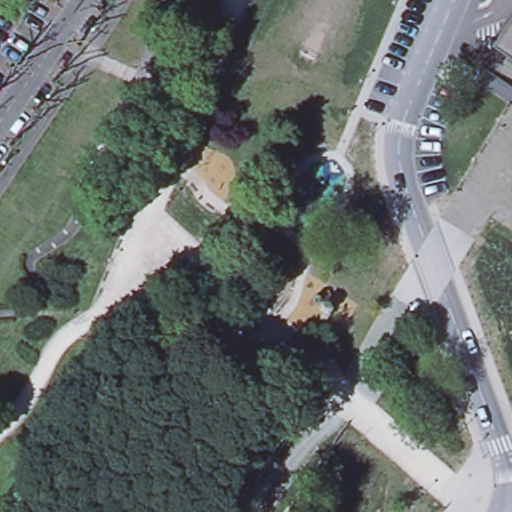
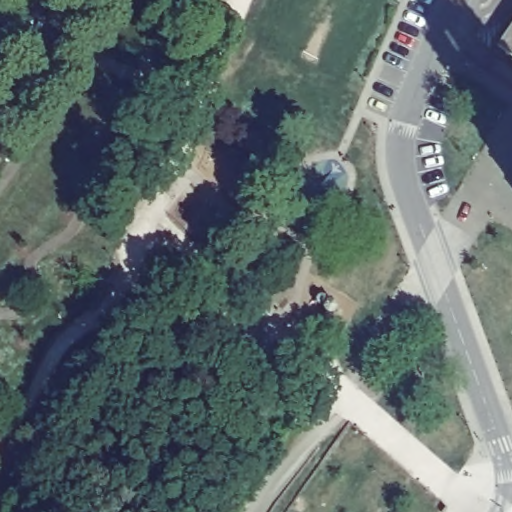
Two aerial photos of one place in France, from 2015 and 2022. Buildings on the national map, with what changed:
unchanged [(499,47),(512,28),(512,57),(499,47)]

